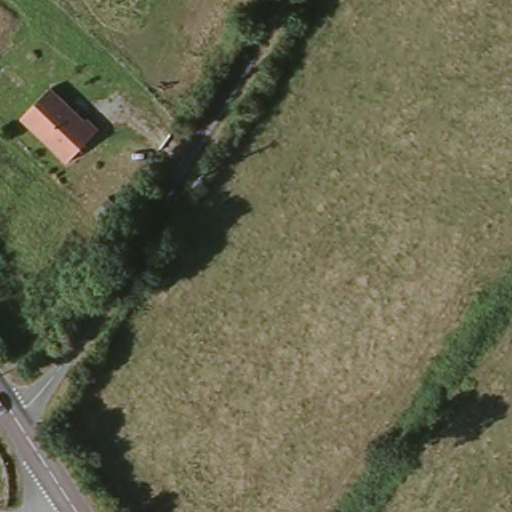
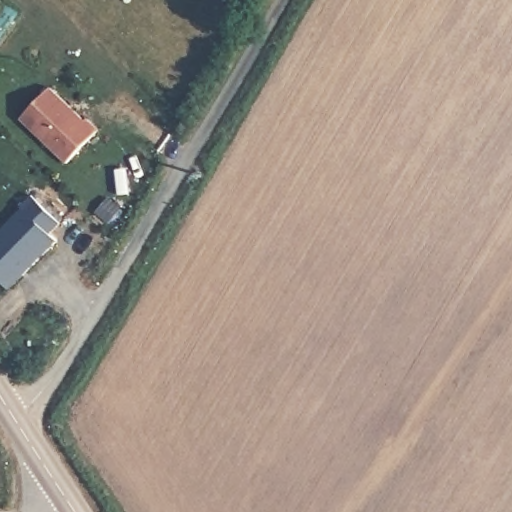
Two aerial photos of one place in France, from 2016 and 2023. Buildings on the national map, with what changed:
unchanged [(50,89),(94,129),(64,163),(20,120),(50,89)]
new [(51,234),(58,242),(9,290),(0,281),(0,231),(25,207),(23,204),(32,196),(62,224),(51,234)]

